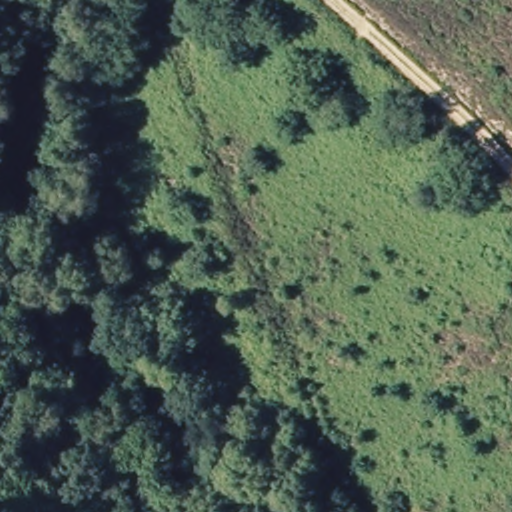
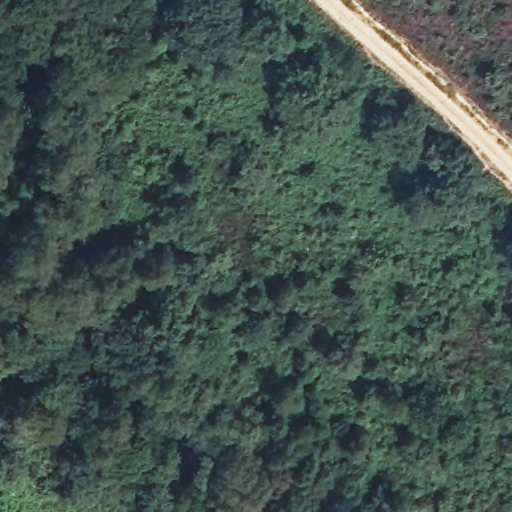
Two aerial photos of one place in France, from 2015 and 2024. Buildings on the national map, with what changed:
unchanged [(280,512),(239,512),(248,496),(280,512)]

